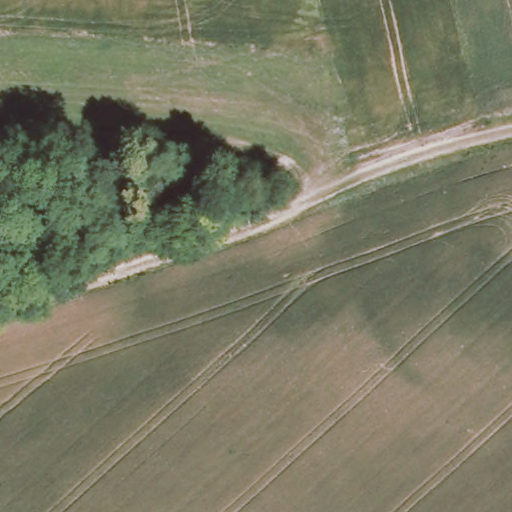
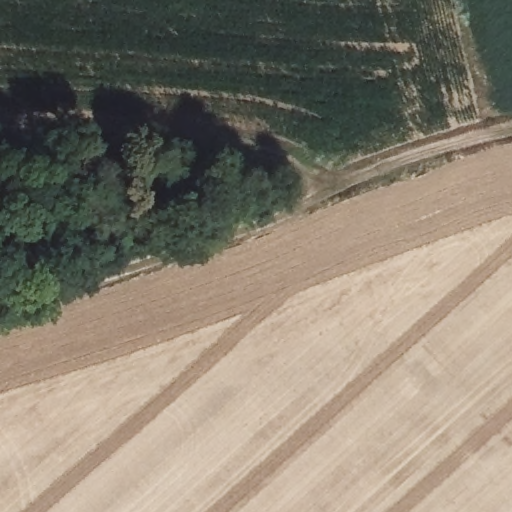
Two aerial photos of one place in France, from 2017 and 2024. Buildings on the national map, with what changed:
unchanged [(10,206),(11,230),(0,231),(0,208),(10,206)]

